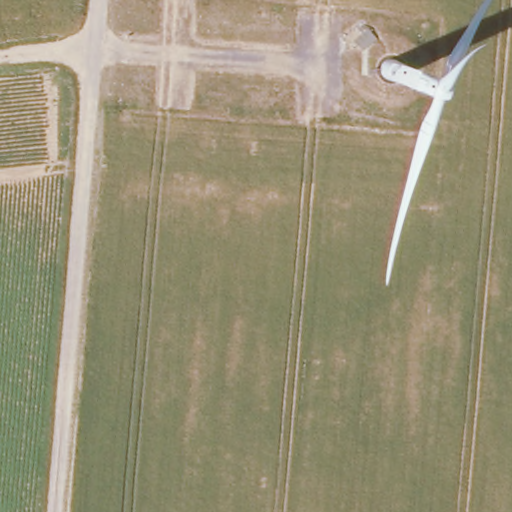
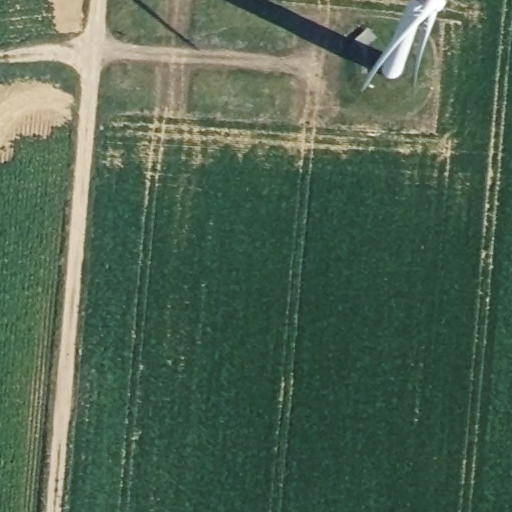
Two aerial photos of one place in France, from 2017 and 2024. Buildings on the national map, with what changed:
unchanged [(356,42),(370,30),(379,40),(365,52),(356,42)]

